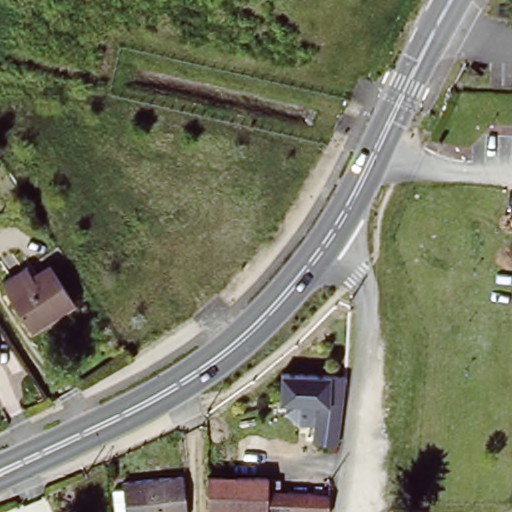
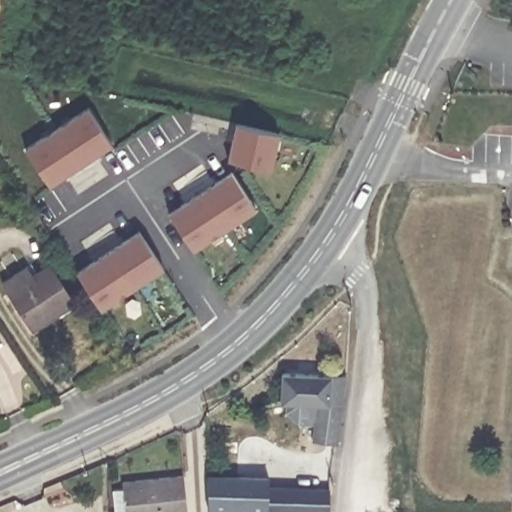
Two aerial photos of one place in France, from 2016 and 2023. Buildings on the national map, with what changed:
new [(88,108),(112,145),(49,186),(25,149),(88,108)]
new [(236,124),(279,134),(271,171),(228,161),(236,124)]
new [(232,173),(256,210),(193,251),(169,214),(232,173)]
new [(139,232),(163,268),(101,310),(77,273),(139,232)]
unchanged [(79,301),(39,327),(17,294),(57,267),(79,301)]
unchanged [(0,346),(1,348),(0,349),(0,346)]
unchanged [(310,445),(311,408),(278,407),(279,377),(339,378),(338,422),(334,446),(310,445)]
unchanged [(123,478),(183,471),(188,512),(128,512),(123,478)]
unchanged [(317,492),(317,475),(334,476),(331,493),(317,492)]
unchanged [(213,510),(213,477),(273,478),(273,491),(315,492),(315,512),(277,512),(213,510)]

